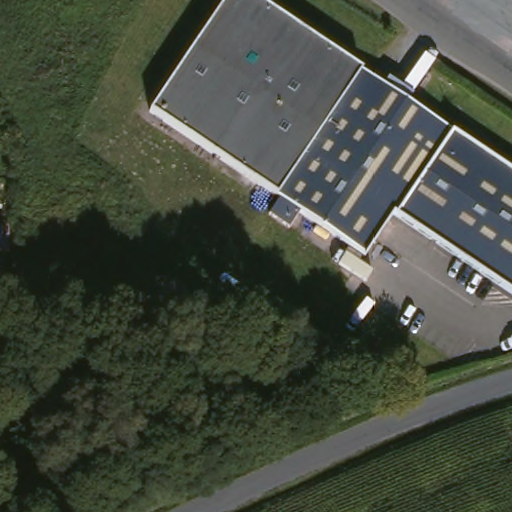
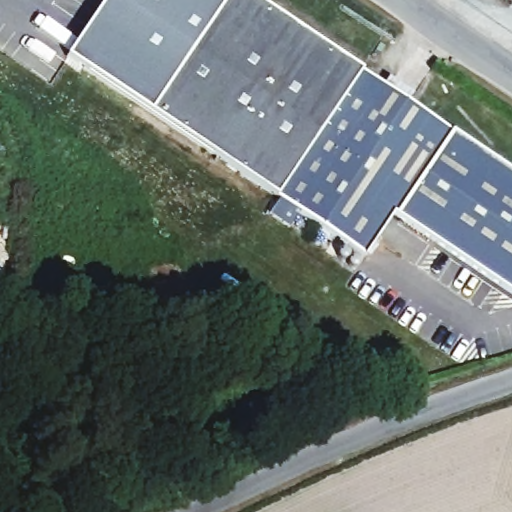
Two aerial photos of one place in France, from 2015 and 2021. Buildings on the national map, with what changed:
new [(105,0),(235,0),(157,116),(69,55),(105,0)]
demolished [(220,0),(235,0),(157,116),(147,109),(220,0)]
unchanged [(157,116),(235,0),(255,0),(352,66),(267,191),(157,116)]
unchanged [(512,175),(512,296),(394,216),(363,259),(272,195),(267,191),(352,66),(360,70),(512,175)]

